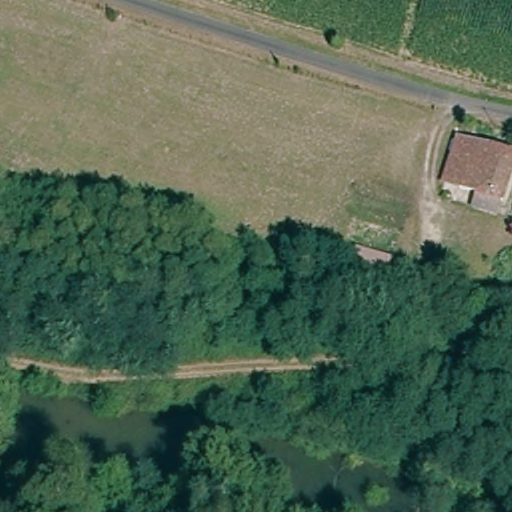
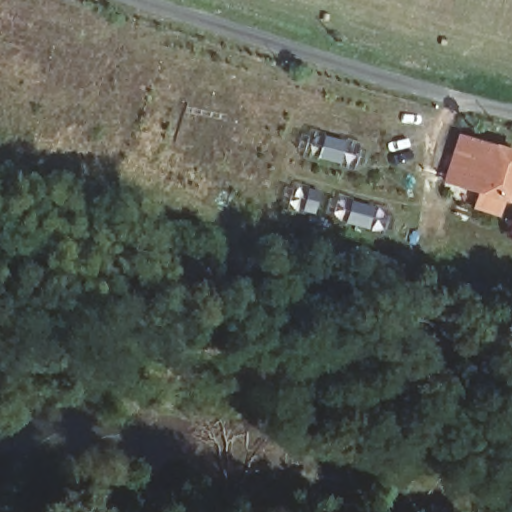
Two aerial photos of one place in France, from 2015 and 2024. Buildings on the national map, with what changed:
unchanged [(479,190),(450,181),(464,136),(512,152),(512,170),(503,198),(502,198),(497,215),(474,207),(479,190)]
unchanged [(407,268),(402,287),(369,277),(375,258),(407,268)]

